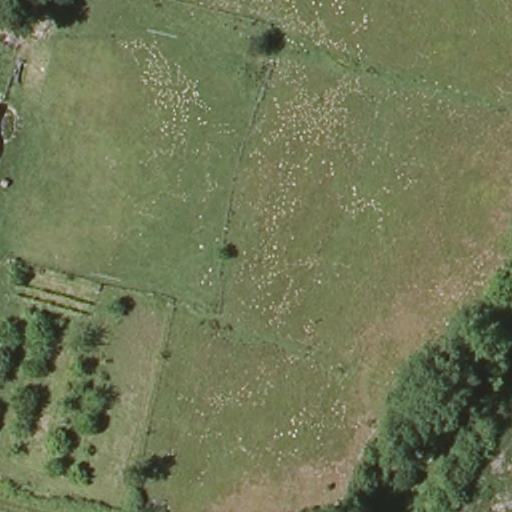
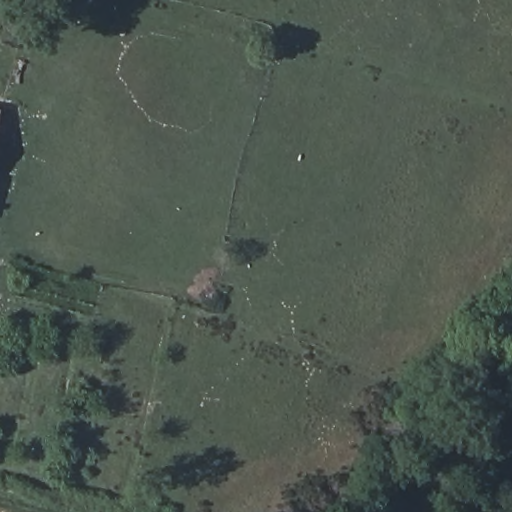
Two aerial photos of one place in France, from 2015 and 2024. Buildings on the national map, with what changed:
unchanged [(0,124),(0,107),(4,108),(0,124)]

